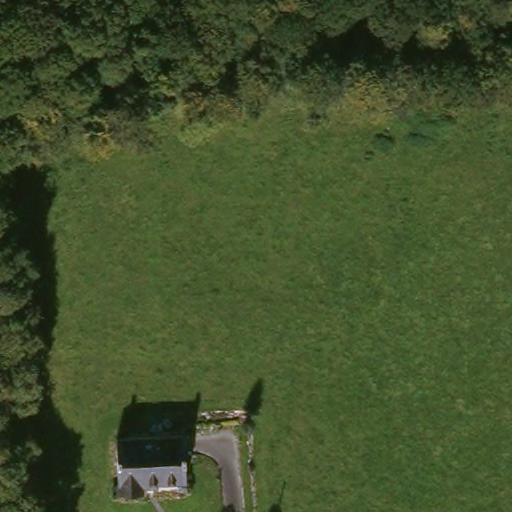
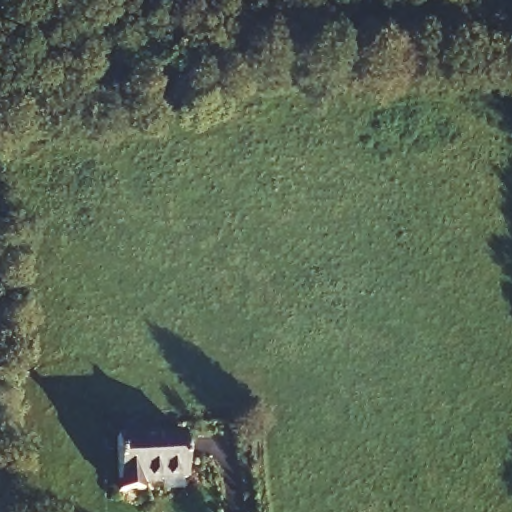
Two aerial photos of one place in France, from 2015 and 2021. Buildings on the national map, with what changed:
unchanged [(119,491),(111,435),(177,427),(184,483),(119,491)]

